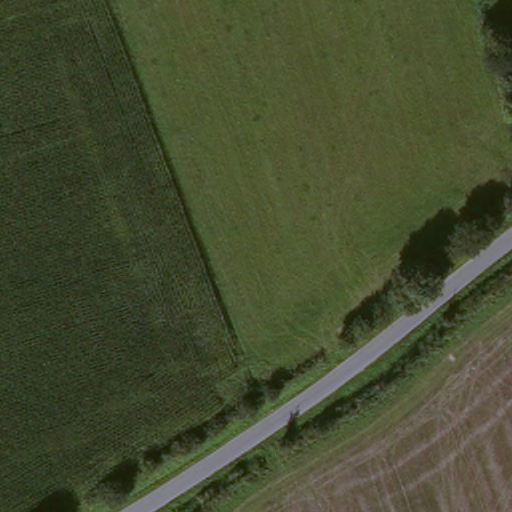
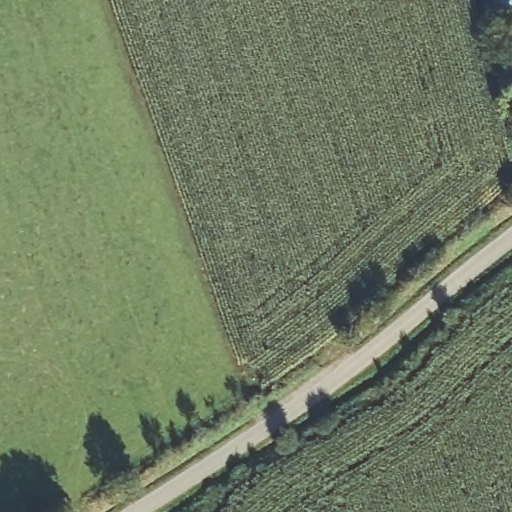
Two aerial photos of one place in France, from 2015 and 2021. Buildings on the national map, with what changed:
[]

